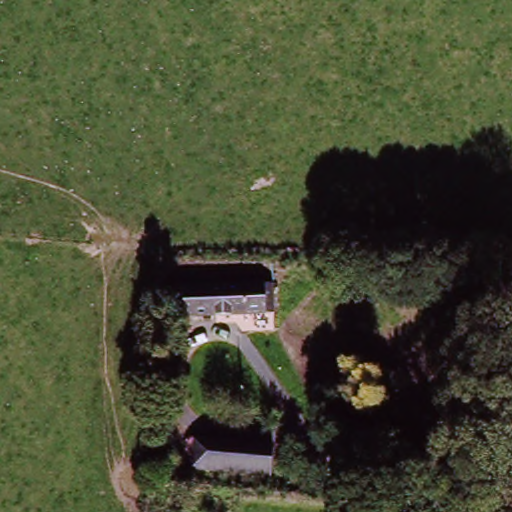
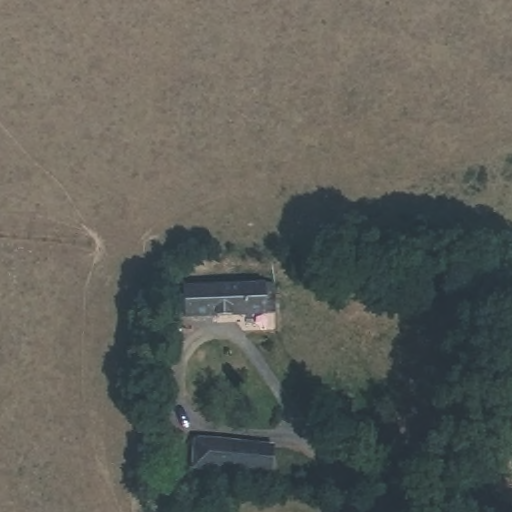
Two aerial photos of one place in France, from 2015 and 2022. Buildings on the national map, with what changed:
unchanged [(270,319),(187,314),(167,313),(169,290),(188,291),(271,296),(270,319)]
unchanged [(438,333),(428,383),(410,379),(420,329),(438,333)]
unchanged [(192,452),(272,448),(274,471),(193,474),(192,452)]

